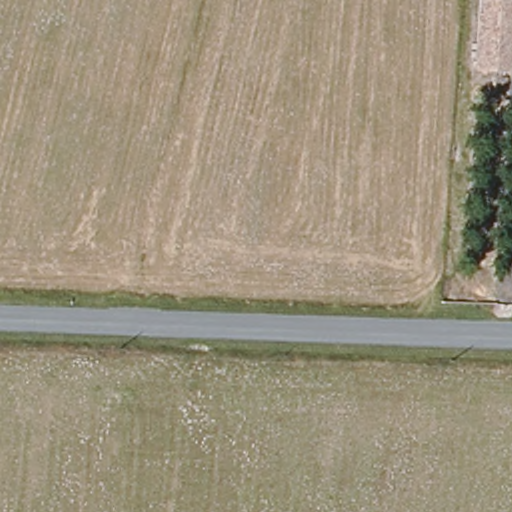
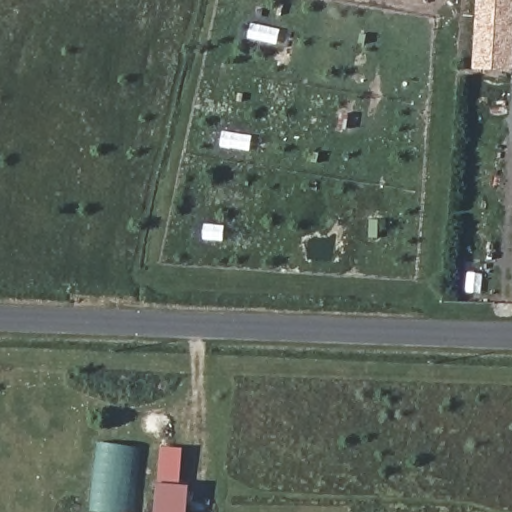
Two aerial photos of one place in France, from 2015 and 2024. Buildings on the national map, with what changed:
unchanged [(511,77),(472,76),(477,0),(512,0),(512,63),(511,77)]
new [(94,512),(90,511),(100,432),(141,439),(132,512),(94,512)]
new [(180,485),(191,485),(189,512),(155,512),(161,446),(182,448),(180,485)]

